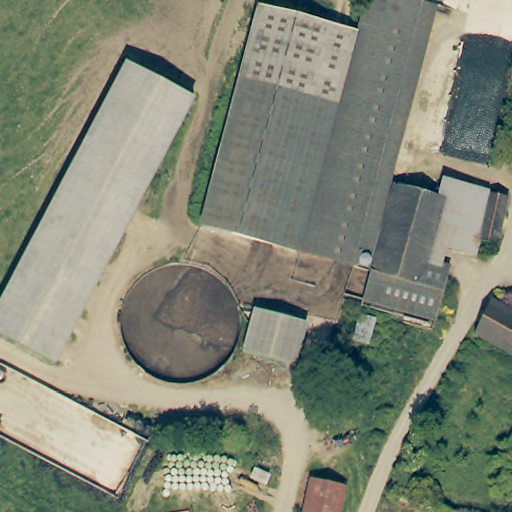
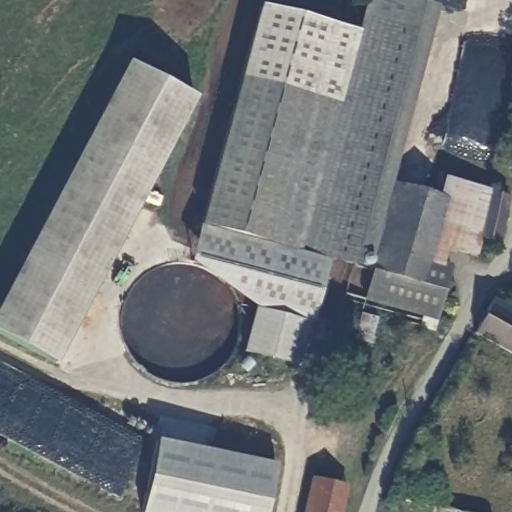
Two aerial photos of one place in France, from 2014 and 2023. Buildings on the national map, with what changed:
unchanged [(358,266),(206,225),(266,7),(364,33),(373,0),(415,0),(430,4),(358,266)]
unchanged [(129,61),(195,97),(54,362),(0,333),(0,304),(129,61)]
unchanged [(478,254),(430,241),(441,197),(446,180),(495,192),(512,197),(512,203),(510,212),(503,242),(483,237),(478,254)]
unchanged [(430,241),(425,260),(420,280),(376,269),(398,186),(441,197),(430,241)]
new [(328,258),(313,322),(306,322),(256,308),(189,262),(199,225),(206,225),(328,258)]
unchanged [(453,267),(440,317),(369,298),(376,269),(420,280),(425,260),(453,267)]
unchanged [(512,352),(479,333),(497,300),(512,308),(512,352)]
unchanged [(306,322),(295,365),(245,352),(256,308),(306,322)]
unchanged [(375,318),(368,343),(352,338),(359,314),(375,318)]
new [(141,512),(156,438),(276,463),(267,512),(141,512)]
unchanged [(310,479),(345,486),(340,512),(303,512),(310,480),(310,479)]
demolished [(434,512),(394,512),(397,492),(436,502),(434,512)]

